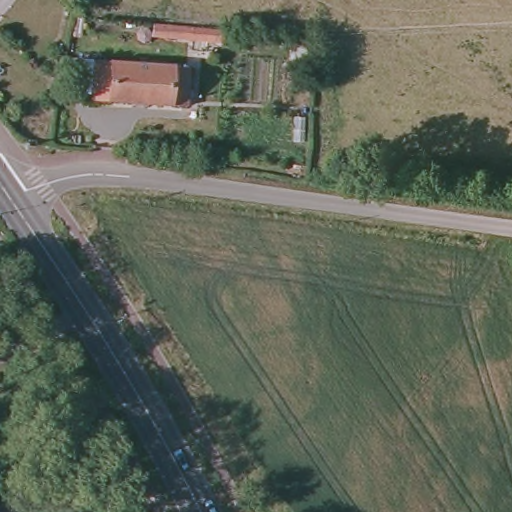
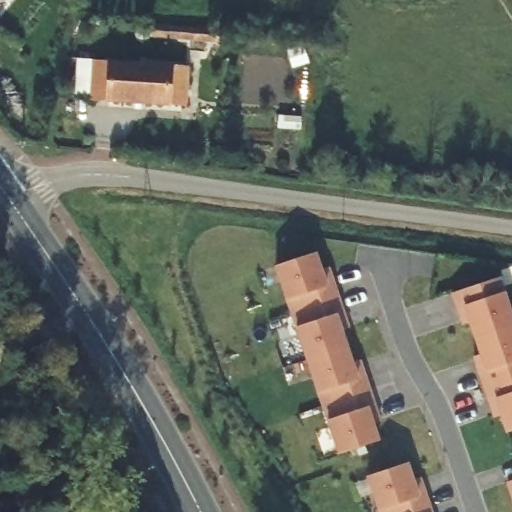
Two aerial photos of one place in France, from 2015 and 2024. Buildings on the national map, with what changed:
unchanged [(190,29),(197,30),(197,42),(192,42),(166,38),(168,26),(190,29)]
unchanged [(185,110),(90,101),(94,61),(190,70),(185,110)]
new [(315,253),(321,271),(328,268),(348,328),(342,331),(352,363),(360,361),(380,422),(373,424),(379,441),(339,455),(275,266),(315,253)]
new [(512,317),(512,431),(507,433),(501,415),(494,417),(474,357),(481,355),(475,338),(470,322),(462,325),(452,293),(499,278),(512,317)]
new [(407,463),(413,481),(420,478),(431,512),(379,512),(367,477),(407,463)]
new [(512,496),(507,482),(512,481),(512,496)]

